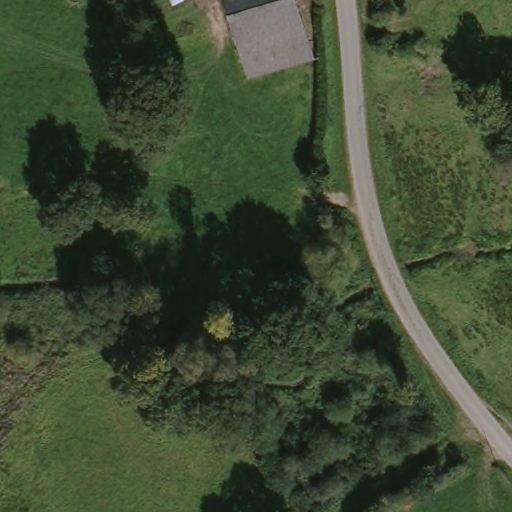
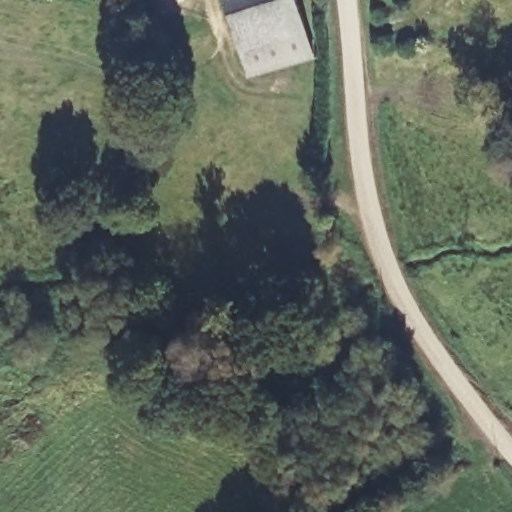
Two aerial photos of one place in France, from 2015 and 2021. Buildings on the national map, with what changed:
unchanged [(314,16),(282,25),(245,36),(241,37),(233,0),(310,0),(314,16)]
unchanged [(321,45),(253,65),(245,36),(282,25),(314,16),(321,45)]

